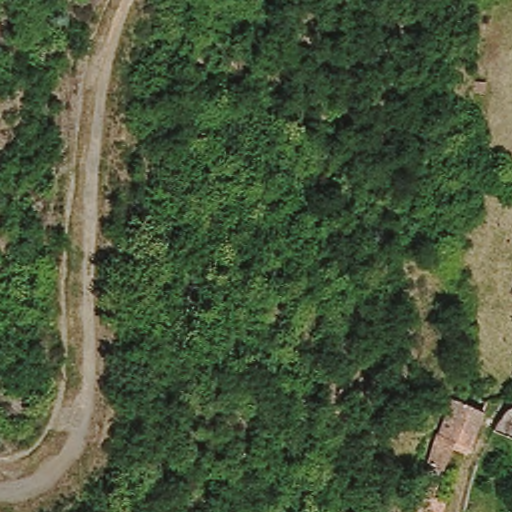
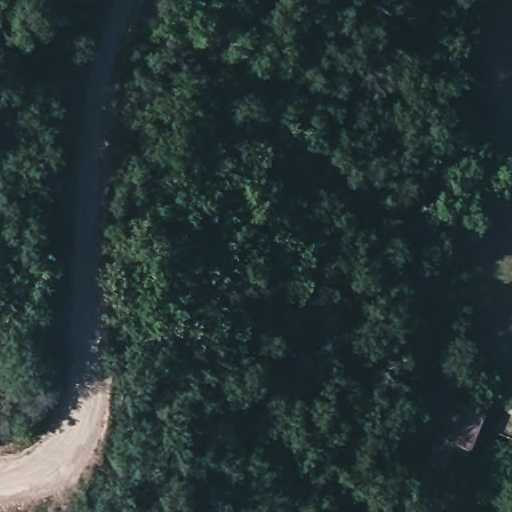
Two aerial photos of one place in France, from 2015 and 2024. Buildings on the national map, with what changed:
unchanged [(434,435),(437,436),(449,402),(456,401),(473,401),(486,404),(468,448),(454,443),(433,499),(446,504),(442,512),(415,512),(416,492),(434,435)]
unchanged [(509,415),(512,413),(512,437),(499,432),(509,415)]

